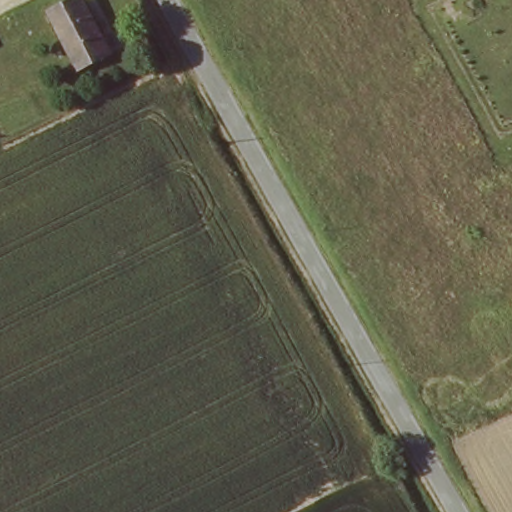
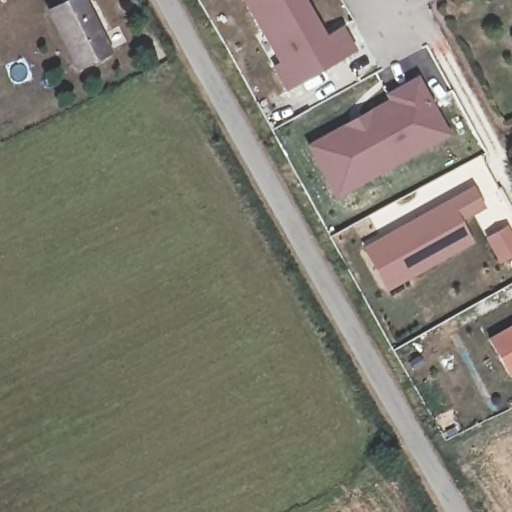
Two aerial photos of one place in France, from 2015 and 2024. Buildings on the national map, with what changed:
unchanged [(78,70),(49,11),(70,0),(79,0),(107,55),(78,70)]
new [(321,32),(342,23),(353,46),(283,88),(269,62),(274,59),(241,0),(303,0),(321,32)]
new [(384,95),(382,90),(407,75),(420,76),(445,131),(331,194),(304,141),(384,95)]
new [(362,248),(473,187),(486,208),(461,222),(474,242),(386,292),(362,248)]
new [(512,319),(512,366),(504,370),(485,333),(512,319)]

